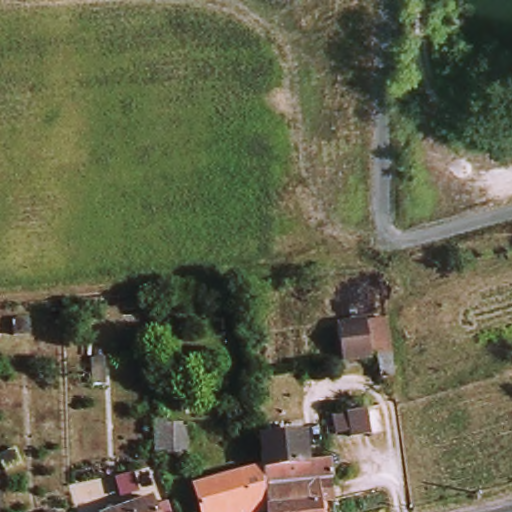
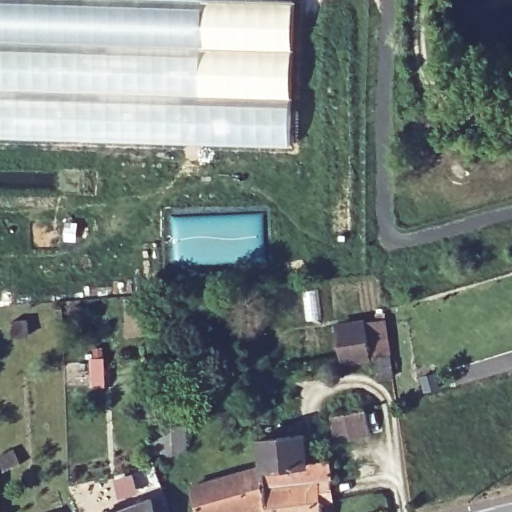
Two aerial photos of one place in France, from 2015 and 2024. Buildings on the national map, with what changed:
new [(291,147),(129,143),(0,138),(0,0),(296,0),(291,147)]
unchanged [(379,378),(377,355),(342,358),(339,323),(387,318),(390,337),(392,353),(395,376),(379,378)]
unchanged [(0,346),(0,333),(10,332),(11,346),(0,346)]
unchanged [(93,357),(106,356),(106,380),(94,380),(93,357)]
unchanged [(346,414),(366,411),(369,437),(349,439),(346,414)]
unchanged [(156,427),(170,426),(171,450),(157,452),(156,427)]
unchanged [(308,446),(309,464),(333,462),(335,487),(321,488),(267,496),(265,485),(264,474),(268,475),(266,450),(308,446)]
unchanged [(206,512),(200,489),(265,485),(267,496),(269,512),(206,512)]
unchanged [(325,512),(269,512),(267,496),(321,488),(325,512)]
unchanged [(158,512),(114,512),(152,497),(158,512)]

